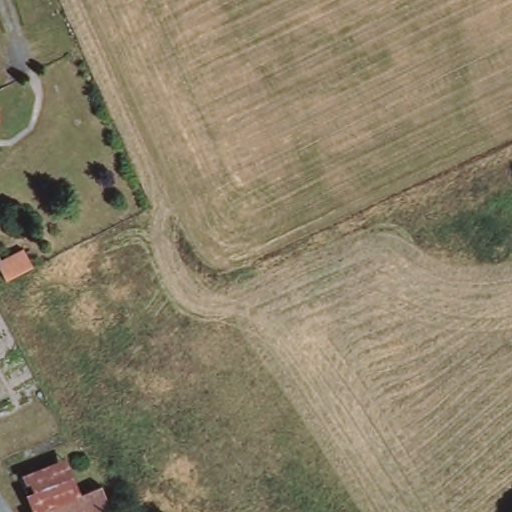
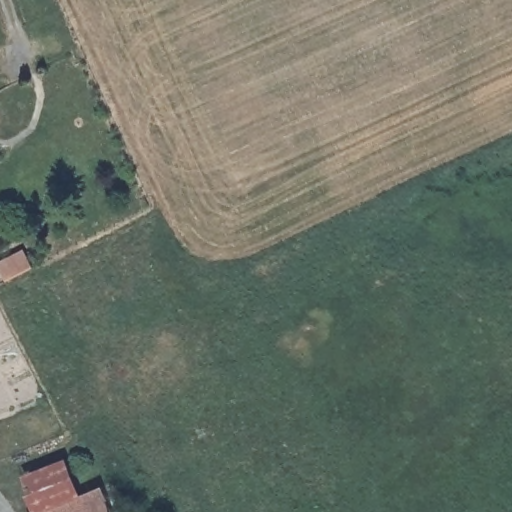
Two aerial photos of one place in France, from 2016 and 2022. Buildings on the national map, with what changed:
unchanged [(1,259),(30,246),(39,265),(11,278),(1,259)]
unchanged [(105,487),(111,512),(35,512),(21,475),(67,460),(81,496),(105,487)]

